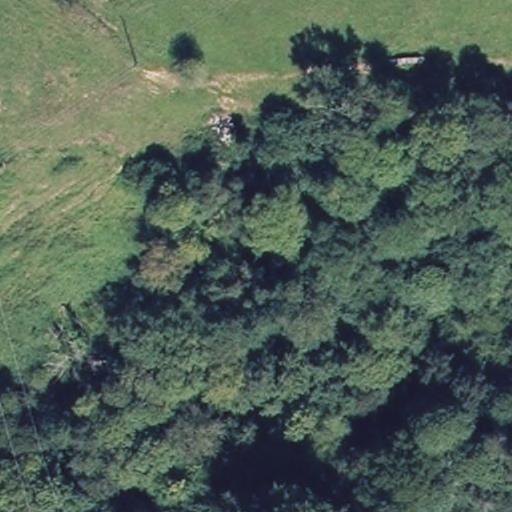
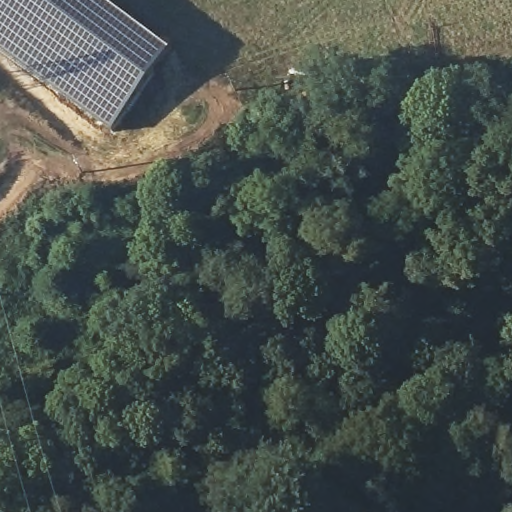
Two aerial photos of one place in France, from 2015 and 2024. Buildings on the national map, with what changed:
new [(174,54),(113,135),(0,51),(0,0),(100,0),(174,54)]

